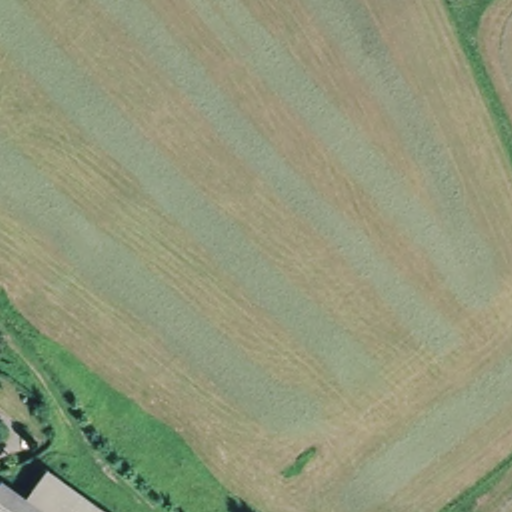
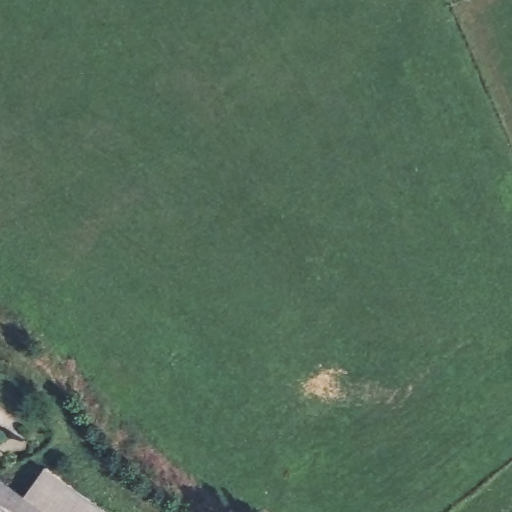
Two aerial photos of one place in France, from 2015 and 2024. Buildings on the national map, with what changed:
unchanged [(24,500),(43,472),(45,474),(102,512),(0,512),(0,482),(24,500)]

